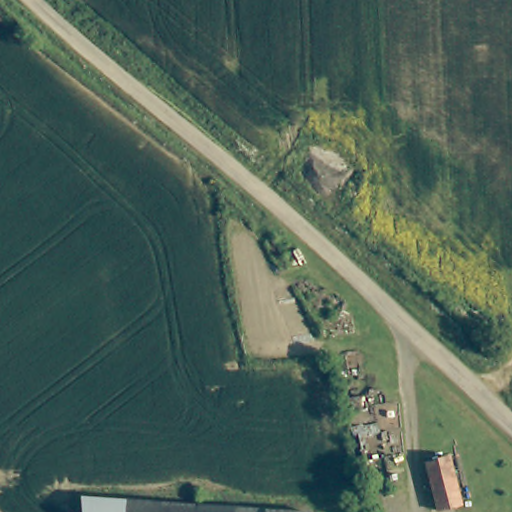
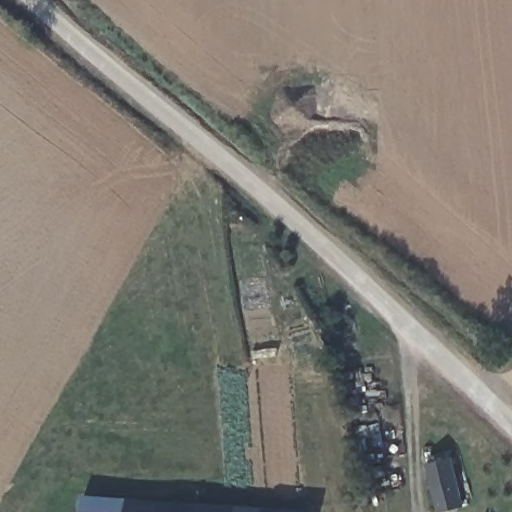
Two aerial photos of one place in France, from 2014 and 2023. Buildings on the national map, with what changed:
unchanged [(441,512),(436,512),(426,463),(455,457),(465,507),(441,512)]
unchanged [(86,512),(87,498),(122,501),(204,505),(204,512),(86,512)]
unchanged [(204,512),(204,505),(237,507),(237,512),(204,512)]
unchanged [(265,509),(265,512),(237,512),(237,507),(265,509)]
unchanged [(265,512),(265,509),(291,512),(265,512)]

